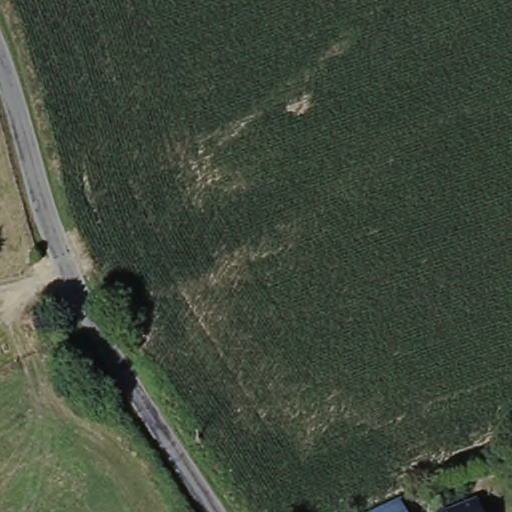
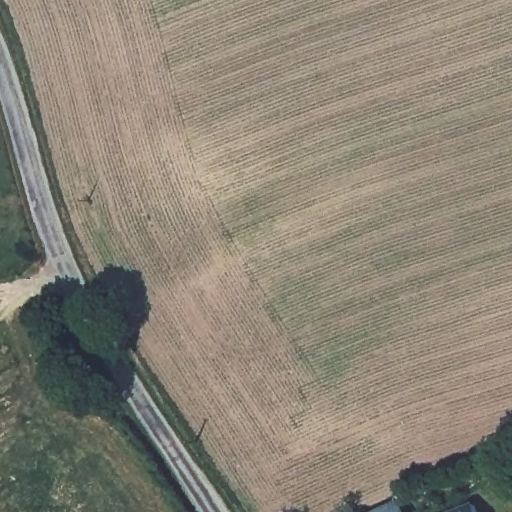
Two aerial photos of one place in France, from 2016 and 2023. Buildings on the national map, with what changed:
unchanged [(377,512),(400,500),(407,512),(377,512)]
unchanged [(483,512),(473,512),(481,508),(483,512)]

